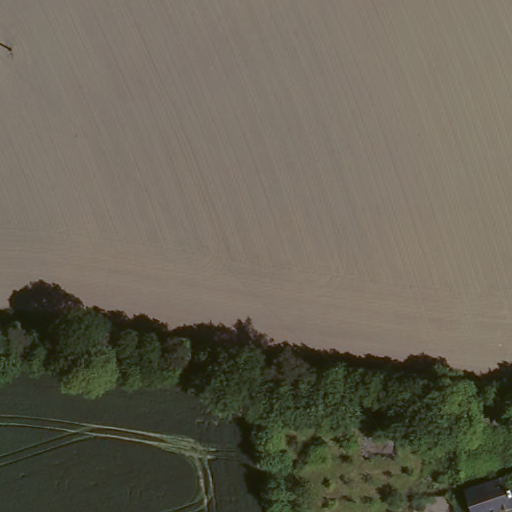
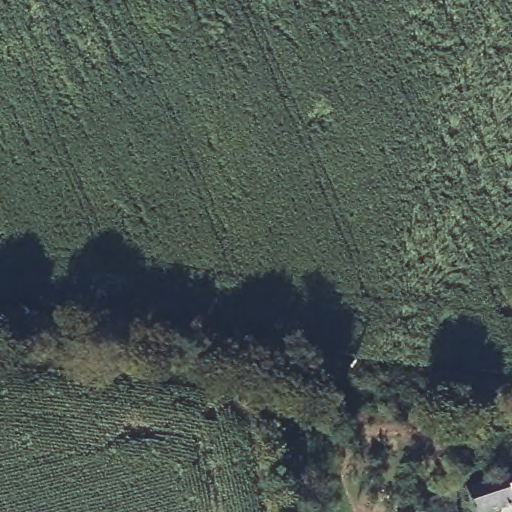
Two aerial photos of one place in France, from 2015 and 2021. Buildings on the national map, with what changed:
unchanged [(465,490),(512,475),(512,504),(488,512),(472,512),(465,490)]

